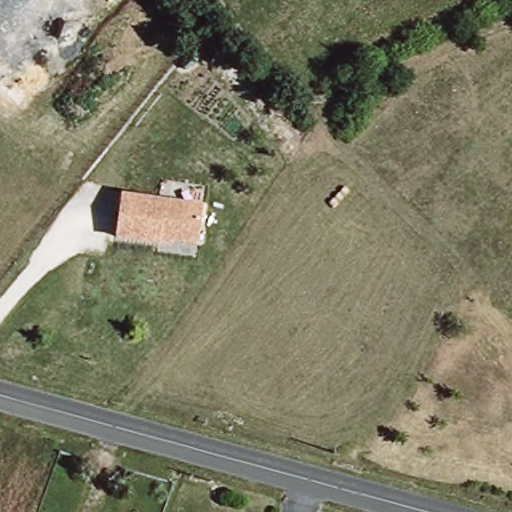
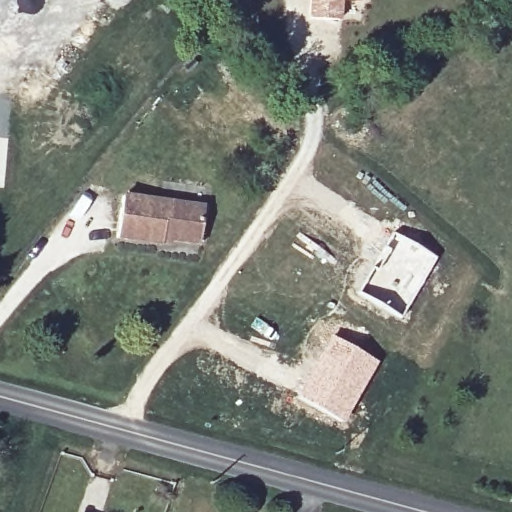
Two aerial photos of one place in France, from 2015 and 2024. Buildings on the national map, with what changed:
new [(309,0),(367,0),(367,1),(344,0),(342,19),(307,17),(309,0)]
unchanged [(127,194),(208,206),(203,242),(166,236),(165,242),(121,236),(127,194)]
new [(398,233),(437,255),(400,317),(358,292),(398,233)]
new [(332,336),(377,361),(343,422),(295,396),(332,336)]

